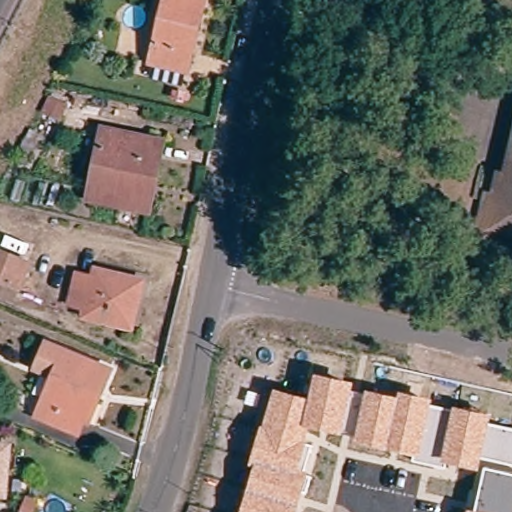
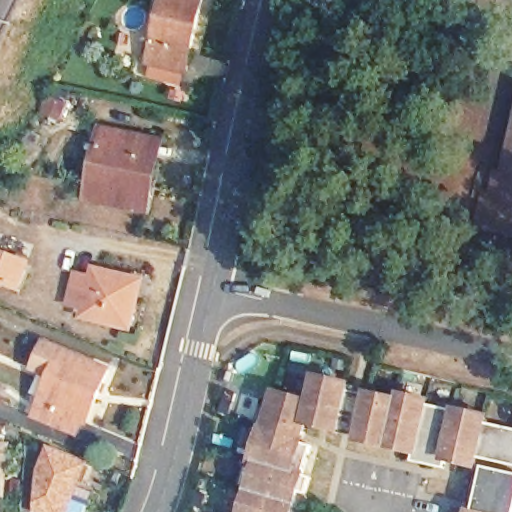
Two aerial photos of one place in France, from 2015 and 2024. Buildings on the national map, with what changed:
unchanged [(149,63),(164,0),(204,0),(187,72),(149,63)]
unchanged [(46,97),(48,93),(68,104),(59,121),(39,110),(46,97)]
unchanged [(16,154),(29,129),(42,136),(26,166),(14,159),(16,154)]
unchanged [(89,200),(104,130),(154,140),(161,142),(151,194),(148,212),(89,200)]
unchanged [(487,193),(491,193),(496,173),(506,175),(512,148),(512,235),(478,227),(487,193)]
unchanged [(0,274),(0,246),(23,254),(13,279),(0,274)]
unchanged [(81,318),(83,308),(70,306),(78,274),(91,277),(94,269),(133,279),(141,281),(135,307),(130,329),(81,318)]
unchanged [(83,417),(78,415),(71,428),(32,411),(49,371),(31,364),(41,339),(105,365),(83,417)]
unchanged [(254,466),(250,464),(260,424),(264,424),(275,387),(309,397),(315,373),(353,380),(352,391),(366,393),(366,389),(399,396),(400,390),(433,397),(432,405),(454,410),(454,405),(491,413),(489,423),(512,428),(512,463),(483,456),(479,468),(447,462),(445,467),(412,460),(413,455),(355,441),(356,435),(310,427),(307,444),(313,446),(306,473),(312,475),(307,494),(303,493),(298,512),(241,512),(254,466)]
new [(44,443),(91,461),(70,512),(28,512),(44,443)]
unchanged [(0,496),(0,445),(8,446),(4,496),(0,496)]
unchanged [(468,508),(476,509),(485,466),(512,472),(512,512),(467,512),(468,508)]

